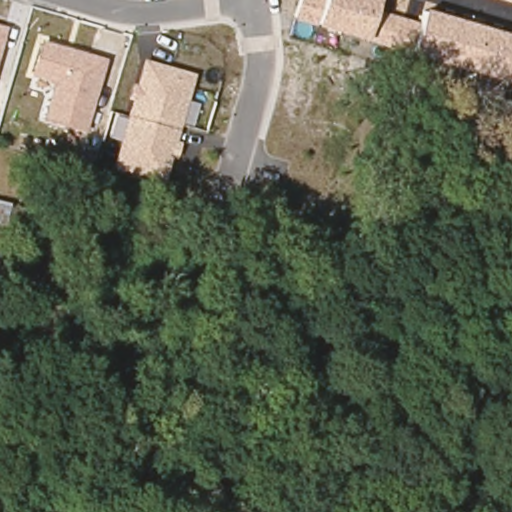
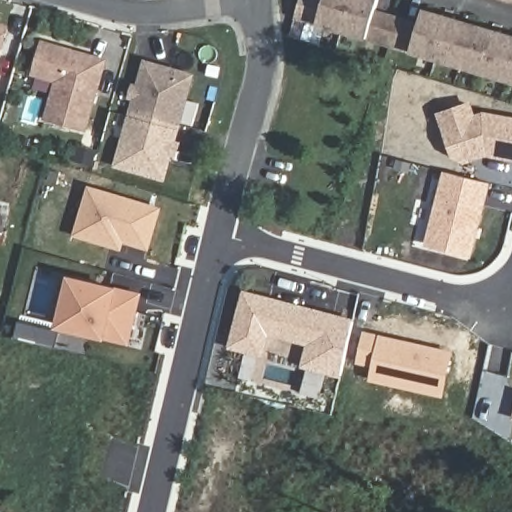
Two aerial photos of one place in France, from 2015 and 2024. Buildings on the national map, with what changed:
unchanged [(414,55),(365,39),(318,25),(294,16),(300,0),(379,0),(376,10),(423,25),(426,8),(512,33),(512,81),(414,55)]
unchanged [(502,0),(512,0),(512,3),(502,0)]
unchanged [(0,24),(8,26),(0,56),(0,24)]
unchanged [(108,57),(88,131),(42,121),(53,82),(30,76),(43,40),(108,57)]
unchanged [(188,100),(199,102),(193,125),(182,122),(177,140),(182,141),(178,157),(173,156),(164,187),(112,175),(120,142),(108,140),(114,114),(127,116),(132,100),(128,99),(131,82),(136,84),(143,60),(195,73),(188,100)]
new [(437,113),(472,100),(476,114),(484,111),(512,117),(512,162),(488,157),(467,164),(437,113)]
new [(444,171),(491,184),(472,259),(424,246),(444,171)]
new [(146,251),(111,240),(109,247),(75,237),(89,192),(158,212),(146,251)]
unchanged [(0,236),(0,198),(10,200),(0,236)]
new [(119,251),(109,247),(111,240),(121,243),(119,251)]
new [(138,299),(126,345),(58,329),(69,282),(138,299)]
new [(356,320),(342,378),(301,367),(307,346),(269,335),(264,358),(227,348),(244,290),(356,320)]
new [(5,320),(19,325),(15,341),(1,337),(5,320)]
new [(368,384),(371,366),(356,363),(359,352),(361,353),(364,330),(454,351),(444,398),(368,384)]

